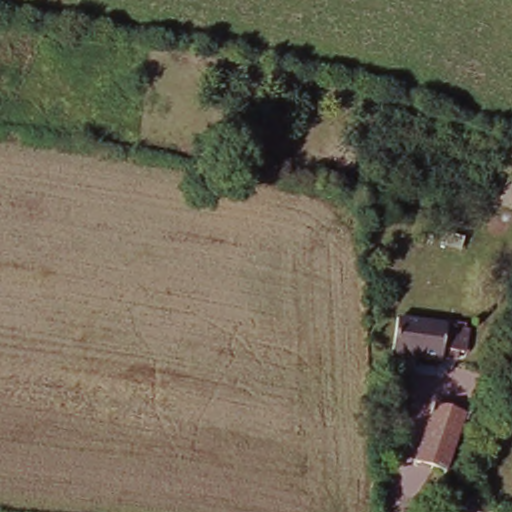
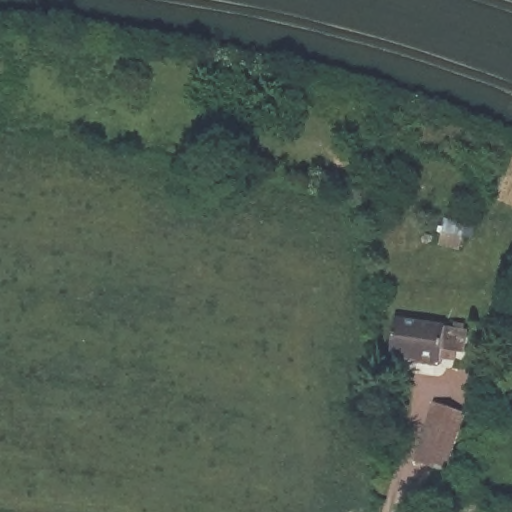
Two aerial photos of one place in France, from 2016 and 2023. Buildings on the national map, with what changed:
unchanged [(397,320),(453,328),(456,322),(470,325),(463,351),(446,349),(443,363),(394,355),(397,320)]
unchanged [(439,407),(467,418),(443,472),(416,462),(439,407)]

